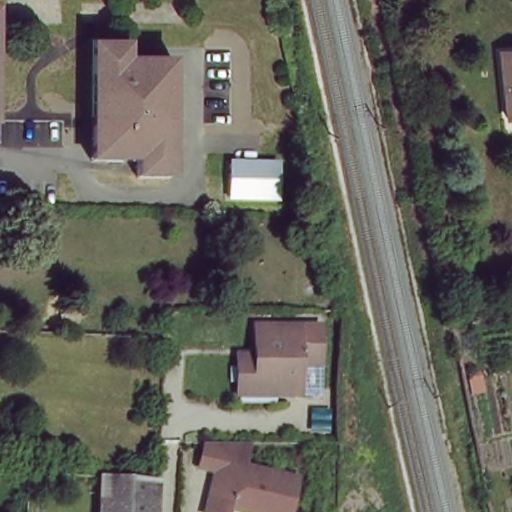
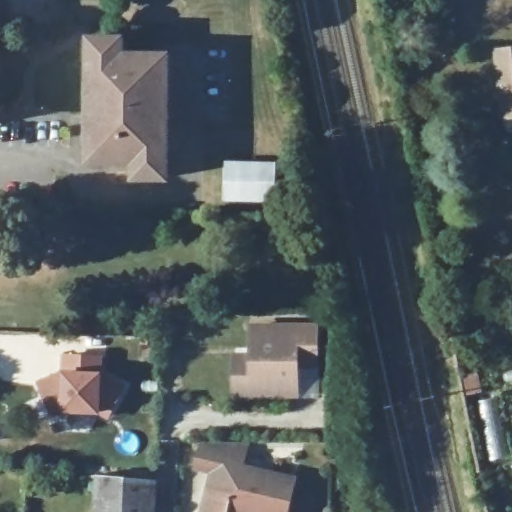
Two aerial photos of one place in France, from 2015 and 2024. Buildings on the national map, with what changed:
unchanged [(169,181),(141,180),(140,163),(93,161),(95,37),(127,39),(126,55),(173,56),(169,181)]
unchanged [(496,53),(512,51),(512,119),(504,121),(496,53)]
unchanged [(275,200),(223,198),(224,166),(276,168),(275,200)]
unchanged [(232,385),(232,357),(254,356),(254,349),(249,348),(249,327),(313,326),(314,364),(293,364),(293,395),(270,395),(232,395),(232,385)]
new [(99,414),(61,413),(53,417),(38,382),(63,373),(64,355),(103,356),(103,375),(126,386),(109,420),(99,414)]
unchanged [(248,443),(242,468),(295,480),(288,512),(246,512),(231,509),(226,512),(205,512),(213,480),(219,481),(221,473),(197,468),(202,444),(248,443)]
unchanged [(158,512),(97,512),(99,477),(160,481),(158,512)]

